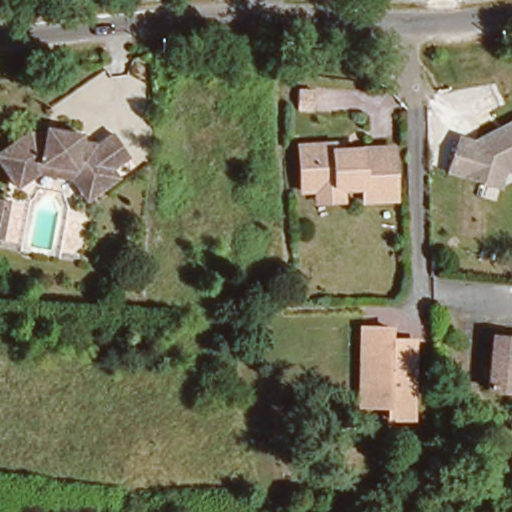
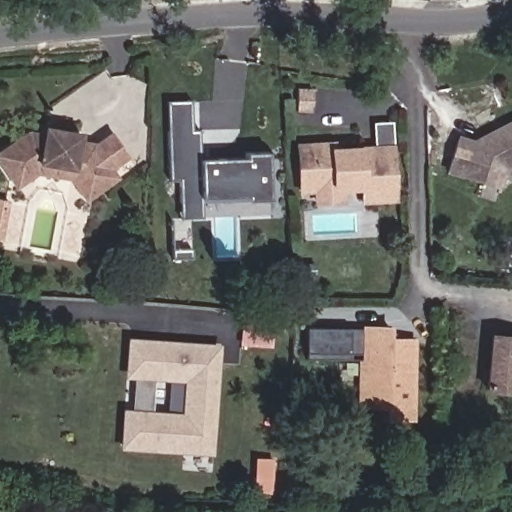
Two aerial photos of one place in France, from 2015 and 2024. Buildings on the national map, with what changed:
new [(180,219),(179,182),(169,182),(167,102),(191,101),(192,131),(200,131),(202,160),(246,159),(245,154),(268,153),(270,201),(245,202),(245,199),(203,200),(203,218),(180,219)]
unchanged [(449,170),(459,137),(475,142),(490,134),(503,126),(512,121),(512,163),(503,168),(497,185),(484,181),(449,170)]
unchanged [(47,130),(48,122),(67,124),(65,134),(91,137),(102,129),(117,149),(102,159),(106,166),(80,183),(63,159),(29,155),(4,173),(0,167),(0,134),(13,125),(47,130)]
unchanged [(394,204),(360,206),(359,193),(346,193),(346,206),(312,206),(313,195),(299,196),(298,144),(335,142),(337,148),(393,144),(394,204)]
new [(415,423),(387,423),(388,409),(358,409),(358,362),(306,361),(306,329),(362,330),(362,325),(390,325),(390,338),(417,339),(415,423)]
unchanged [(477,384),(484,330),(512,332),(512,386),(503,386),(477,384)]
demolished [(384,332),(385,343),(409,342),(413,417),(388,418),(387,406),(362,408),(358,333),(384,332)]
new [(122,409),(131,410),(133,379),(124,378),(127,339),(220,345),(212,455),(119,450),(122,409)]
new [(255,459),(273,460),(272,494),(253,493),(255,459)]

